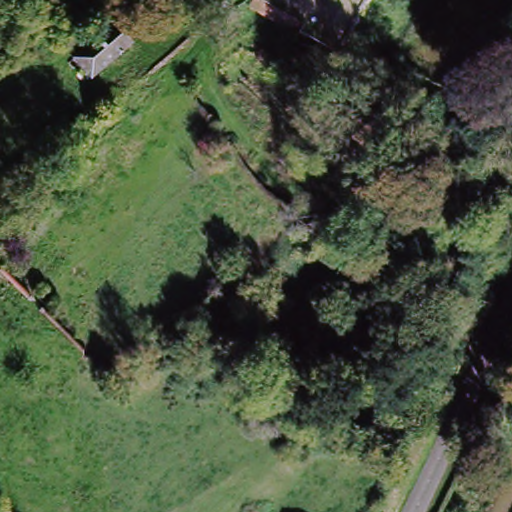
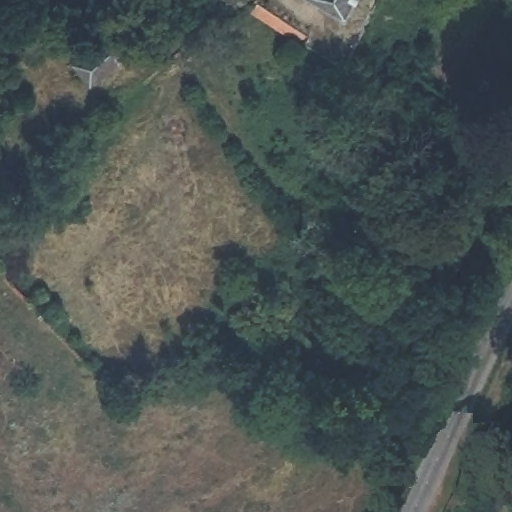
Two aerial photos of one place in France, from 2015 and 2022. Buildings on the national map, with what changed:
unchanged [(258,0),(285,15),(299,24),(296,34),(249,6),(252,0),(258,0)]
unchanged [(331,0),(335,0),(334,1),(331,0)]
unchanged [(87,90),(69,70),(99,45),(110,34),(128,55),(87,90)]
unchanged [(322,221),(357,249),(340,271),(305,244),(322,221)]

